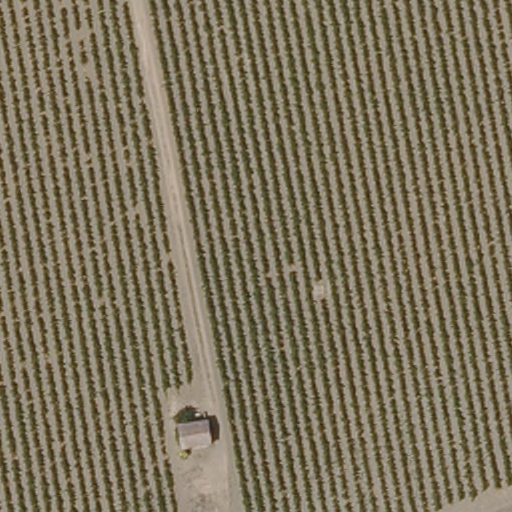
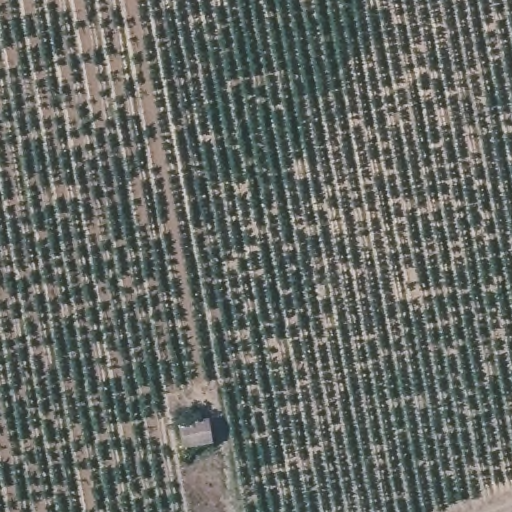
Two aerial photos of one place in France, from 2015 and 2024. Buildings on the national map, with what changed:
unchanged [(211,442),(181,446),(179,423),(208,417),(211,442)]

